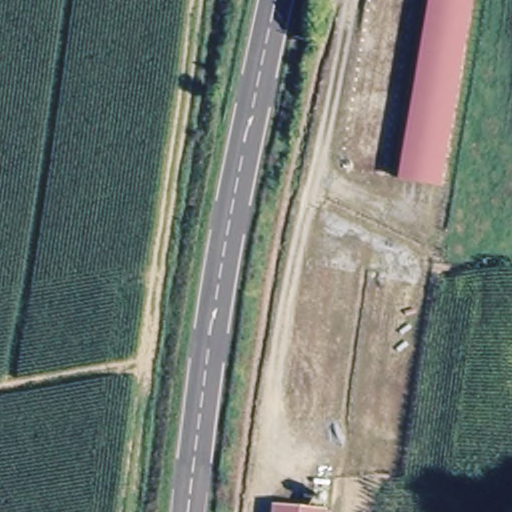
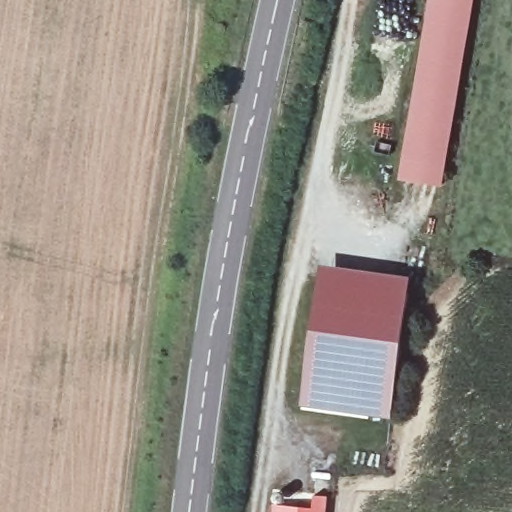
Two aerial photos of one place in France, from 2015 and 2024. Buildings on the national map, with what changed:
unchanged [(391,177),(427,0),(469,0),(431,185),(391,177)]
new [(320,265),(411,278),(392,419),(300,407),(320,265)]
unchanged [(324,512),(278,512),(278,508),(324,512)]

